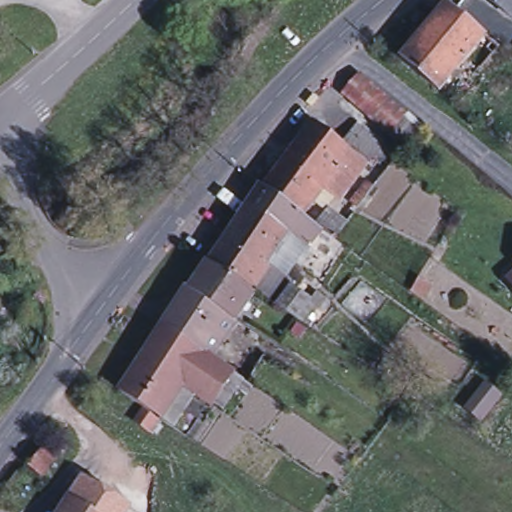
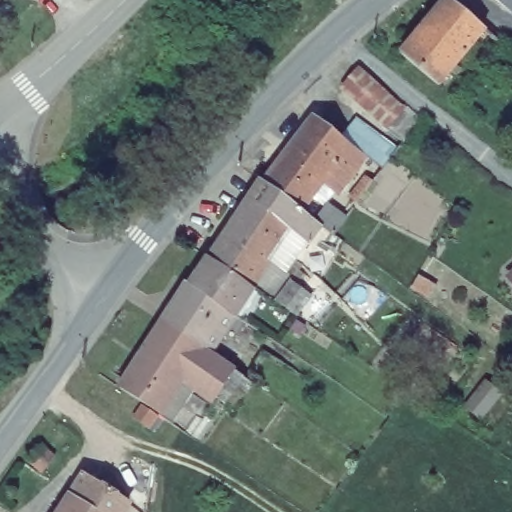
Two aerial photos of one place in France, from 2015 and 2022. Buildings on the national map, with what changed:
unchanged [(445,0),(446,0),(485,33),(458,64),(417,33),(445,1),(445,0)]
unchanged [(512,0),(512,10),(500,0),(512,0)]
unchanged [(417,33),(458,64),(439,85),(400,53),(417,33)]
unchanged [(364,75),(408,114),(392,131),(347,92),(364,75)]
unchanged [(311,227),(300,217),(302,214),(263,184),(290,148),(313,117),(350,146),(367,159),(339,196),(334,202),(353,217),(338,237),(327,229),(295,271),(291,268),(309,242),(303,238),(311,227)]
unchanged [(291,268),(286,274),(267,262),(251,286),(251,287),(209,258),(239,214),(247,203),(263,184),(302,214),(300,217),(311,227),(303,238),(309,242),(291,268)]
unchanged [(209,258),(251,287),(209,355),(161,324),(206,257),(209,258)]
unchanged [(512,274),(512,284),(508,279),(512,274)]
unchanged [(161,324),(209,355),(233,371),(212,402),(181,382),(140,355),(161,324)]
unchanged [(140,355),(181,382),(160,416),(118,388),(140,355)]
unchanged [(142,409),(156,418),(150,427),(136,418),(142,409)]
unchanged [(39,447),(53,460),(41,474),(27,461),(39,447)]
unchanged [(82,477),(128,505),(123,512),(96,512),(70,496),(82,477)]
unchanged [(70,496),(96,512),(59,512),(70,496)]

